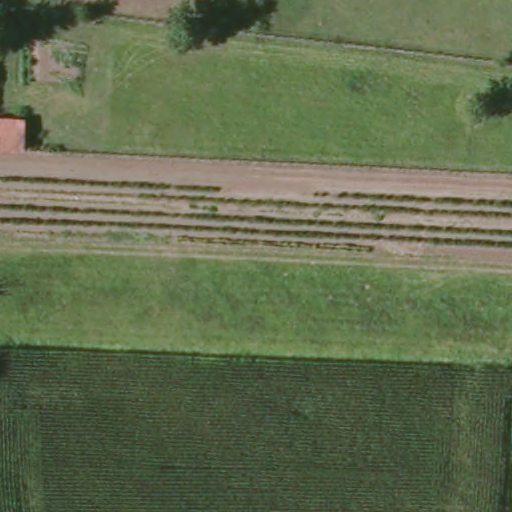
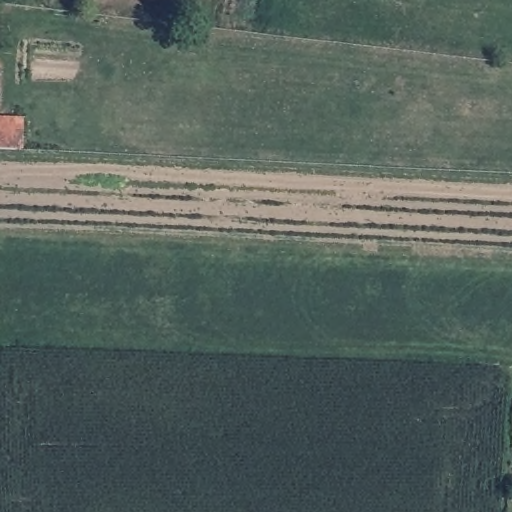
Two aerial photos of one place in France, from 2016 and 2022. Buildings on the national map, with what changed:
unchanged [(25,111),(20,150),(0,152),(0,112),(25,111)]

